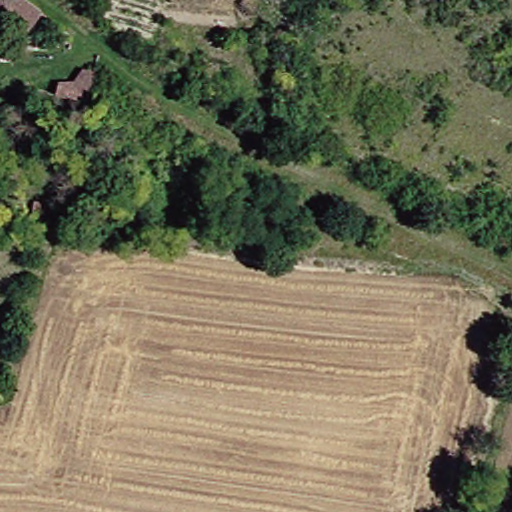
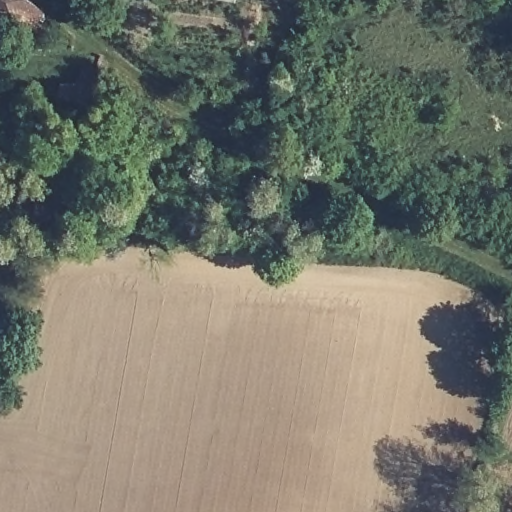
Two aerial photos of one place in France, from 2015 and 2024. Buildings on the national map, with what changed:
unchanged [(43,14),(27,34),(0,14),(0,0),(27,0),(43,14)]

